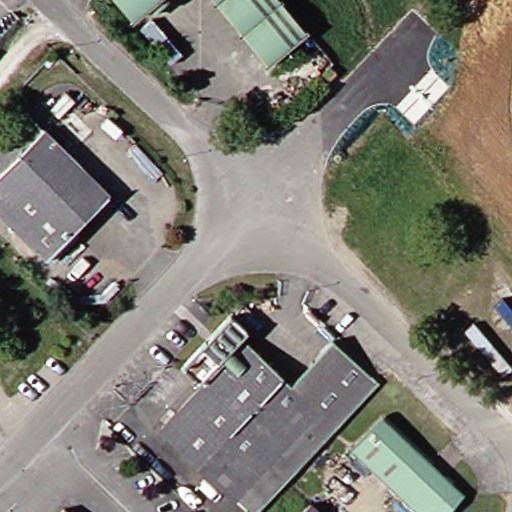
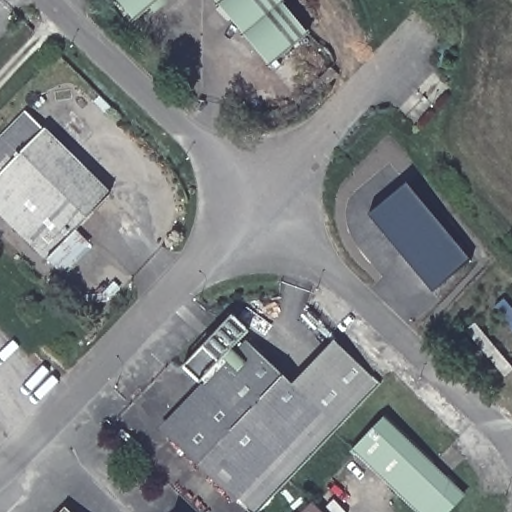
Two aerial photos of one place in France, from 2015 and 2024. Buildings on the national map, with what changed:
unchanged [(98,0),(158,0),(123,29),(98,0)]
unchanged [(267,71),(238,37),(205,0),(275,0),(307,38),(267,71)]
unchanged [(43,259),(0,217),(0,132),(18,114),(103,198),(43,259)]
new [(408,184),(473,261),(434,293),(369,216),(408,184)]
unchanged [(149,436),(199,383),(194,378),(187,384),(169,366),(220,313),(238,330),(219,349),(224,355),(237,344),(282,388),(323,345),(372,391),(279,489),(256,512),(228,512),(149,436)]
unchanged [(431,465),(445,478),(449,481),(454,510),(452,512),(406,512),(347,455),(379,419),(431,465)]
unchanged [(59,512),(47,512),(53,506),(59,512)]
unchanged [(302,506),(308,512),(295,512),(302,506)]

